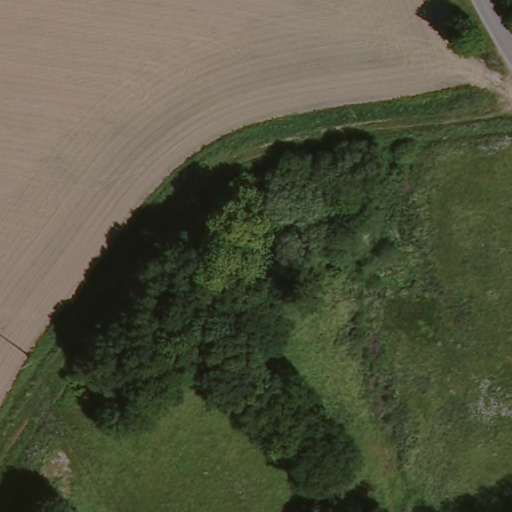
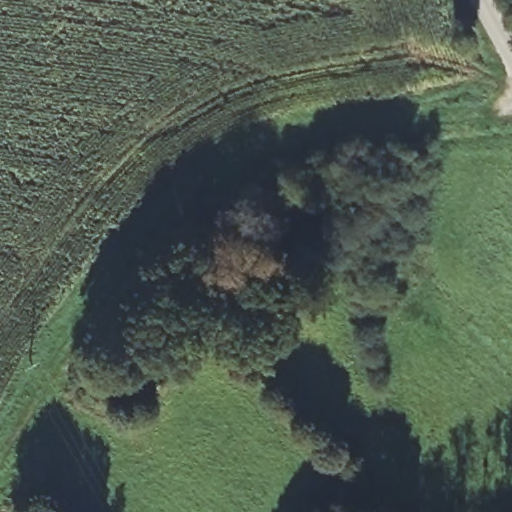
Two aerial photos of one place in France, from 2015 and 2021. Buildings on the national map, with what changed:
[]

